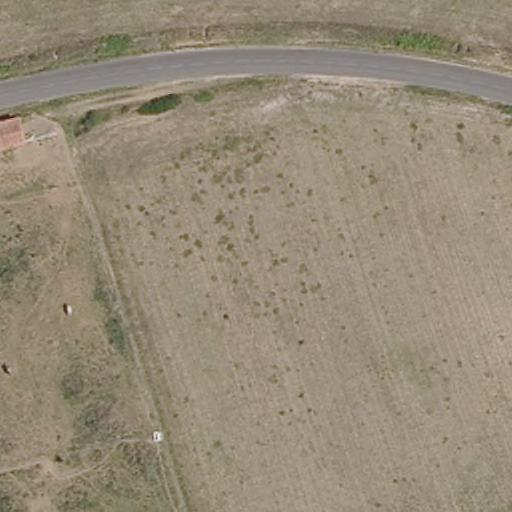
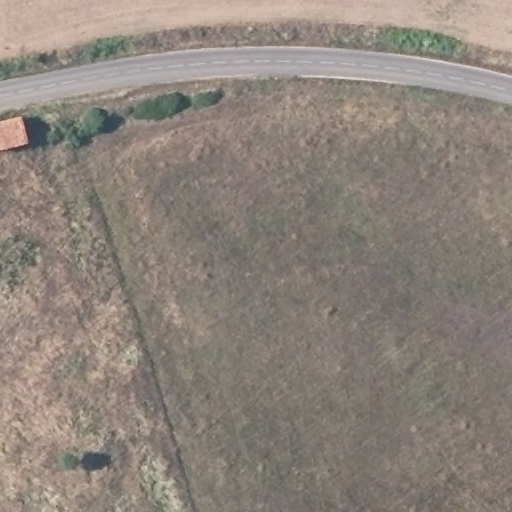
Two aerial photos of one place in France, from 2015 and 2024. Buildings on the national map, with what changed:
unchanged [(26,139),(0,146),(0,119),(20,114),(26,139)]

